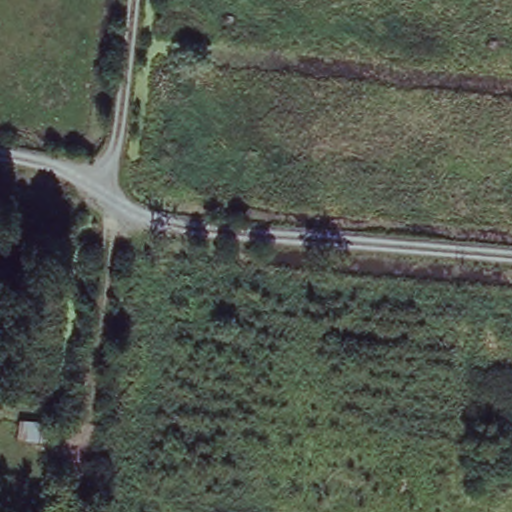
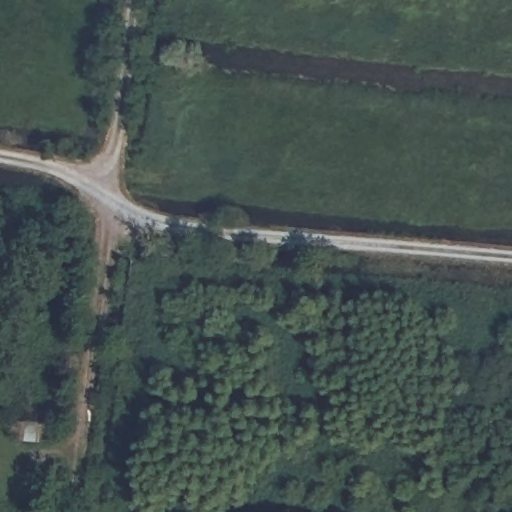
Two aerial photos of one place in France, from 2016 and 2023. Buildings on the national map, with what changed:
unchanged [(47,421),(44,443),(14,440),(16,418),(47,421)]

